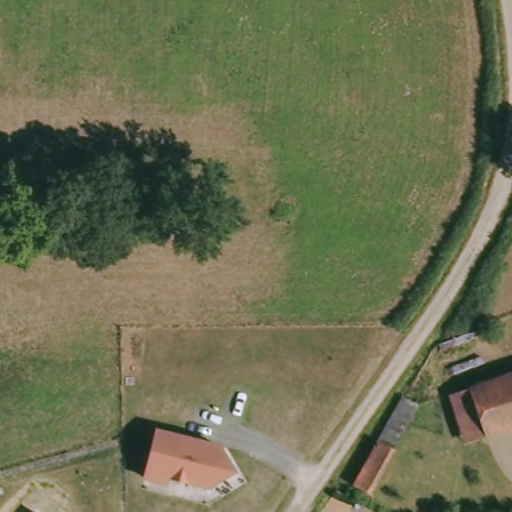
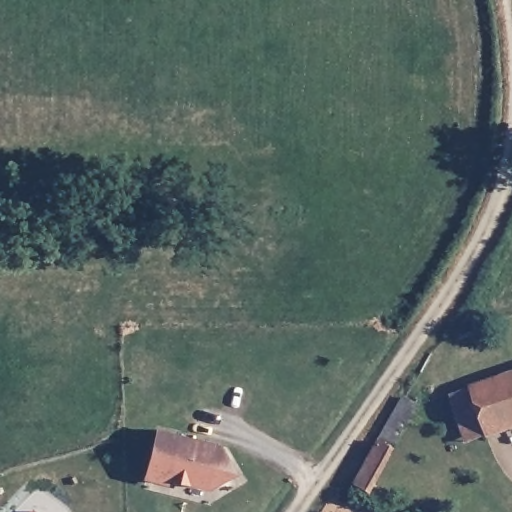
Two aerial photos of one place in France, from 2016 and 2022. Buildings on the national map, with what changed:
unchanged [(480,427),(468,379),(512,369),(512,420),(480,427)]
unchanged [(458,433),(447,384),(468,379),(480,427),(458,433)]
unchanged [(401,400),(415,410),(366,493),(354,486),(401,400)]
unchanged [(170,482),(170,487),(147,486),(151,437),(214,442),(224,454),(234,466),(211,485),(170,482)]
unchanged [(32,510),(35,512),(30,512),(32,510)]

